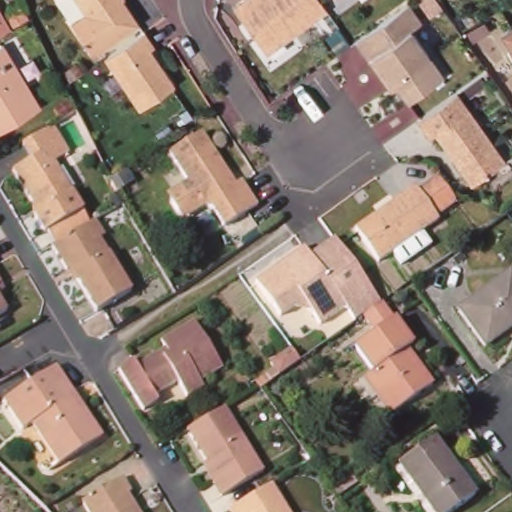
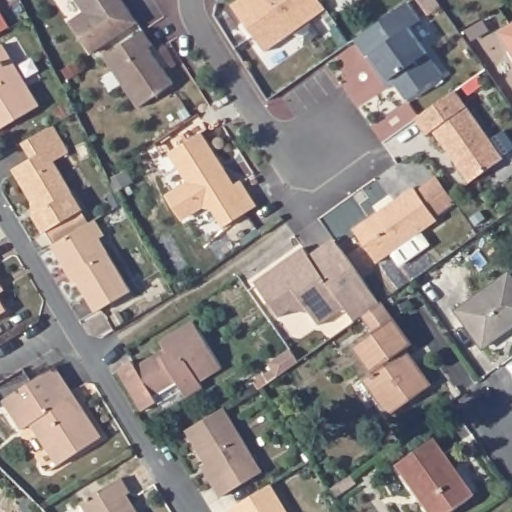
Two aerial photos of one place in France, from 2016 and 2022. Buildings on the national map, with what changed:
unchanged [(138,20),(95,52),(75,21),(89,11),(81,0),(127,0),(138,20)]
unchanged [(315,20),(270,53),(248,22),(236,6),(245,0),(323,0),(330,10),(315,20)]
unchanged [(412,0),(414,0),(425,18),(416,26),(447,72),(405,101),(359,36),(412,0)]
unchanged [(147,30),(157,45),(153,47),(178,84),(144,107),(109,56),(147,30)]
unchanged [(512,30),(512,42),(507,33),(512,30)]
unchanged [(44,104),(0,131),(0,48),(8,43),(44,104)]
unchanged [(458,89),(506,157),(472,180),(421,115),(458,89)]
unchanged [(35,158),(26,143),(57,124),(74,152),(60,161),(88,208),(49,232),(39,215),(44,211),(17,169),(35,158)]
unchanged [(227,169),(230,173),(240,189),(246,185),(262,210),(230,231),(217,213),(210,212),(195,221),(184,218),(175,207),(177,199),(178,195),(192,186),(174,158),(206,137),(227,169)]
unchanged [(445,216),(385,259),(362,226),(386,209),(394,203),(422,183),(445,216)]
unchanged [(101,223),(110,239),(105,241),(137,294),(103,316),(77,273),(72,276),(57,250),(90,230),(101,223)]
unchanged [(325,325),(313,309),(299,307),(285,317),(259,283),(308,248),(314,256),(320,252),(338,238),(348,253),(353,258),(377,291),(384,301),(386,303),(367,316),(363,318),(360,321),(350,306),(325,325)]
unchanged [(0,317),(0,290),(0,286),(0,273),(6,283),(10,290),(3,294),(12,309),(0,317)]
unchanged [(512,275),(512,329),(488,346),(463,311),(512,275)]
unchanged [(380,333),(367,316),(386,303),(387,302),(417,344),(410,349),(436,385),(393,415),(380,397),(375,401),(362,383),(368,380),(378,372),(360,347),(380,333)]
unchanged [(198,321),(226,367),(204,380),(207,386),(192,396),(183,381),(159,396),(162,401),(148,410),(124,370),(137,362),(140,366),(155,358),(169,349),(165,342),(198,321)]
unchanged [(270,363),(291,349),(300,360),(279,375),(270,381),(266,376),(275,370),(270,363)]
unchanged [(60,365),(105,435),(63,464),(35,423),(26,428),(9,400),(60,365)]
unchanged [(191,430),(229,407),(267,471),(225,496),(219,485),(207,466),(212,463),(191,430)]
unchanged [(478,495),(454,512),(438,512),(403,464),(438,439),(478,495)]
unchanged [(136,491),(131,494),(142,512),(92,512),(86,502),(127,477),(136,491)]
unchanged [(291,512),(235,512),(234,509),(275,484),(291,512)]

